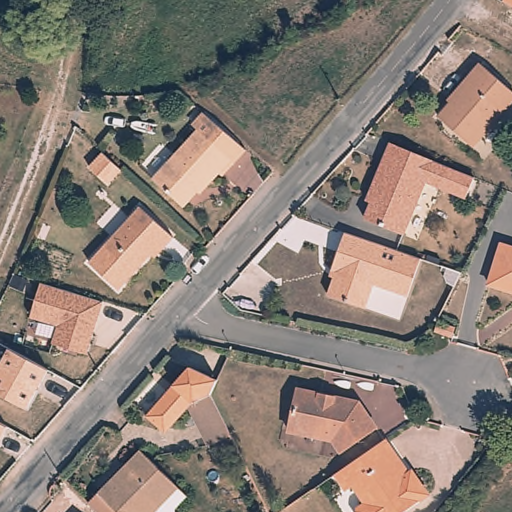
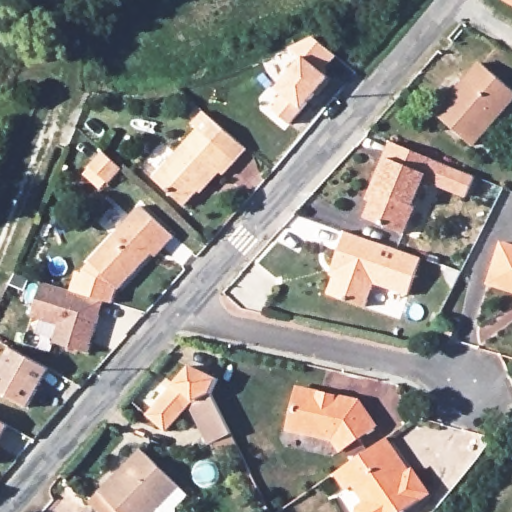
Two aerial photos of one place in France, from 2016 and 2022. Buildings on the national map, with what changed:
new [(512,0),(512,7),(504,3),(506,0),(512,0)]
new [(281,94),(276,89),(301,59),(287,49),(313,37),(336,57),(320,71),(329,79),(301,110),(290,127),(270,111),(281,94)]
unchanged [(512,96),(470,143),(437,113),(467,80),(465,77),(479,61),(512,91),(512,96)]
unchanged [(155,180),(199,131),(194,126),(204,114),(240,147),(248,153),(225,179),(219,173),(186,209),(155,180)]
unchanged [(372,189),(391,143),(424,157),(474,177),(466,197),(426,181),(404,234),(365,219),(372,203),(367,201),(372,189)]
unchanged [(103,156),(112,164),(122,172),(109,187),(90,170),(103,156)]
unchanged [(157,240),(120,281),(91,254),(140,199),(174,230),(161,244),(157,240)]
unchanged [(333,271),(346,233),(421,260),(408,297),(374,285),(366,308),(328,296),(333,282),(329,281),(333,271)]
unchanged [(497,239),(512,244),(512,288),(484,279),(497,239)]
unchanged [(103,302),(87,357),(51,347),(55,329),(29,321),(39,282),(103,302)]
unchanged [(436,332),(439,322),(456,327),(453,337),(436,332)]
unchanged [(47,371),(27,407),(0,393),(0,363),(7,350),(47,371)]
unchanged [(166,436),(142,414),(188,363),(220,379),(210,395),(184,408),(166,436)]
unchanged [(298,391),(359,403),(376,428),(341,452),(333,441),(289,432),(298,391)]
unchanged [(218,452),(213,442),(204,446),(184,408),(210,395),(231,432),(226,435),(232,446),(218,452)]
unchanged [(10,430),(0,447),(0,423),(10,430)]
unchanged [(388,438),(404,462),(412,472),(415,470),(431,493),(405,512),(360,512),(361,507),(368,502),(356,485),(349,490),(338,473),(365,454),(388,438)]
unchanged [(183,492),(170,503),(171,508),(167,512),(97,512),(84,500),(137,446),(183,492)]

